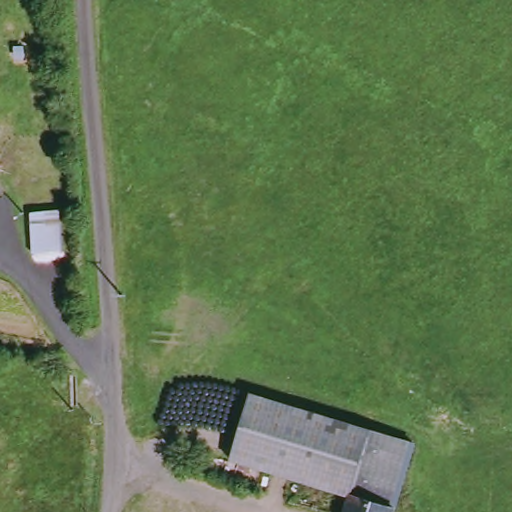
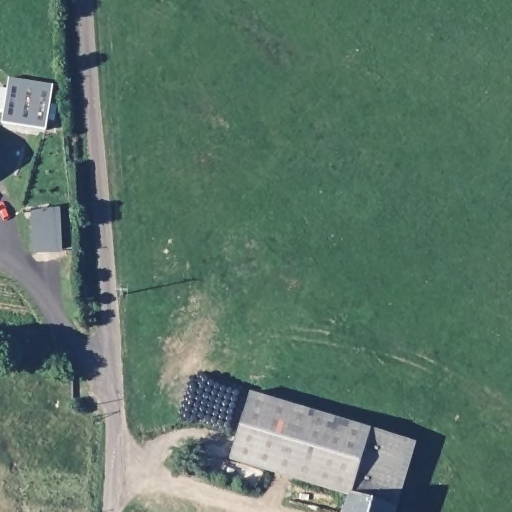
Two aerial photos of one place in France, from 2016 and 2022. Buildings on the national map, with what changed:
new [(53,85),(46,130),(3,123),(5,113),(9,90),(10,78),(53,85)]
unchanged [(37,256),(33,214),(65,209),(68,253),(37,256)]
unchanged [(415,438),(396,512),(348,512),(353,494),(231,459),(251,392),(415,438)]

